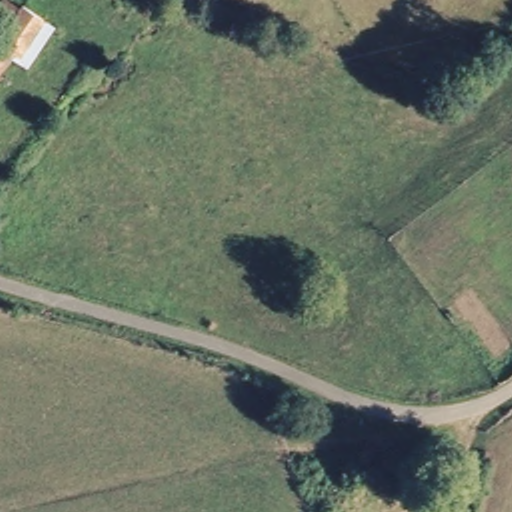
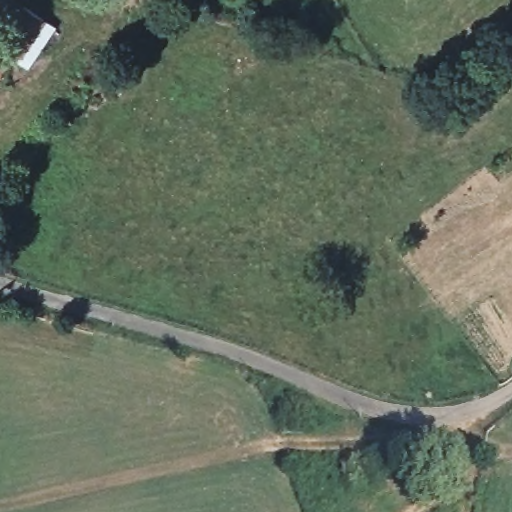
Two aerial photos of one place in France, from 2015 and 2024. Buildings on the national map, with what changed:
unchanged [(21,46),(0,73),(0,41),(27,4),(49,20),(26,50),(21,46)]

